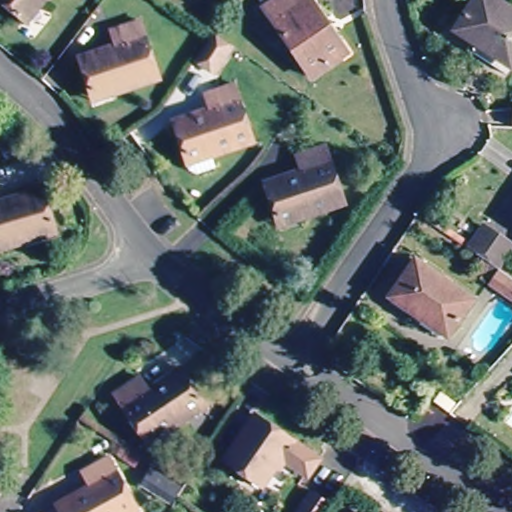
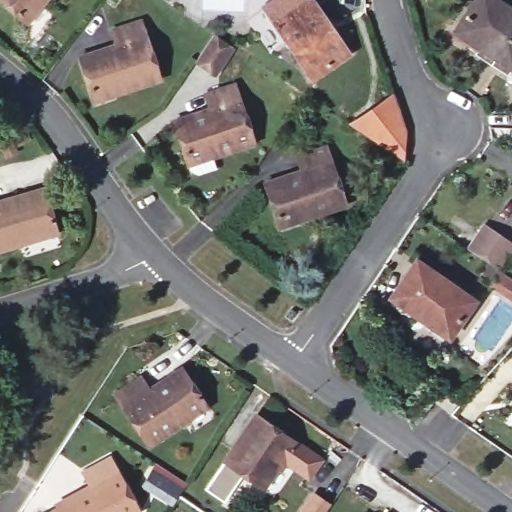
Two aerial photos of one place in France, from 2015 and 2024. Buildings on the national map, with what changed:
unchanged [(6,0),(48,0),(44,5),(33,20),(25,14),(6,0)]
unchanged [(344,61),(312,80),(267,3),(272,0),(308,0),(344,61)]
unchanged [(512,14),(512,59),(478,36),(472,46),(451,31),(471,0),(492,0),(512,14)]
unchanged [(90,86),(81,52),(117,42),(113,25),(144,17),(160,75),(115,88),(92,94),(90,86)]
unchanged [(188,160),(185,151),(175,119),(210,107),(205,92),(235,82),(251,130),(206,145),(209,153),(188,160)]
new [(392,92),(407,145),(401,151),(406,158),(397,165),(370,132),(362,138),(351,123),(367,110),(392,92)]
unchanged [(272,217),(262,180),(297,170),(293,153),(323,145),(341,206),(297,218),(274,224),(272,217)]
unchanged [(0,247),(0,198),(41,186),(51,218),(55,230),(18,241),(0,247)]
unchanged [(492,260),(464,239),(483,217),(511,238),(492,260)]
unchanged [(467,304),(448,331),(422,312),(416,322),(386,301),(412,265),(467,304)]
unchanged [(501,286),(511,273),(512,275),(512,295),(501,286)]
unchanged [(185,422),(149,446),(119,400),(145,383),(155,398),(185,378),(202,402),(206,408),(185,422)]
unchanged [(441,414),(432,426),(419,416),(428,404),(441,414)]
unchanged [(277,464),(268,477),(228,448),(256,409),(321,456),(307,474),(287,460),(282,467),(277,464)]
unchanged [(61,499),(94,486),(85,466),(114,455),(137,512),(44,512),(62,504),(61,499)]
unchanged [(297,512),(307,496),(324,507),(321,512),(297,512)]
unchanged [(392,512),(383,512),(386,507),(392,512)]

